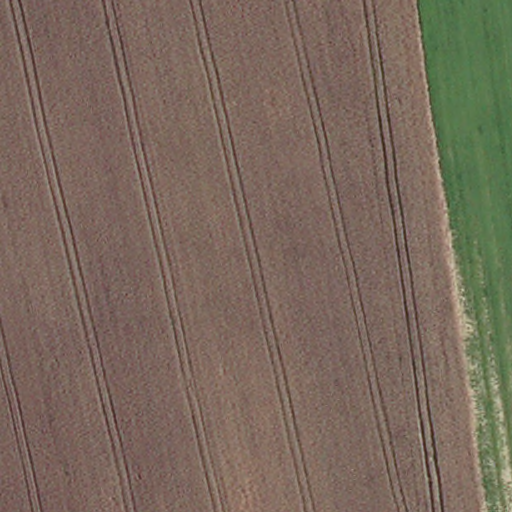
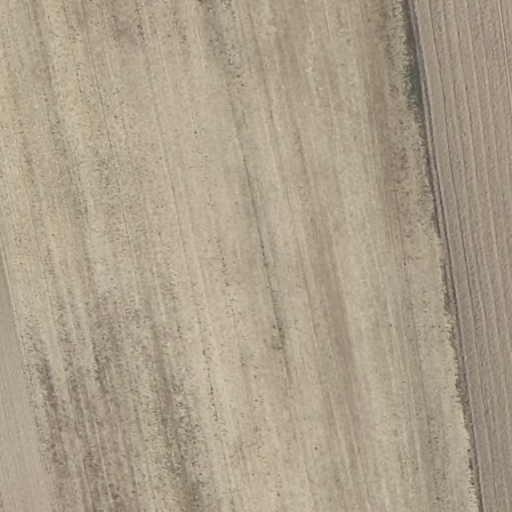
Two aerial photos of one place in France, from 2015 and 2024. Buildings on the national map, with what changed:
[]

